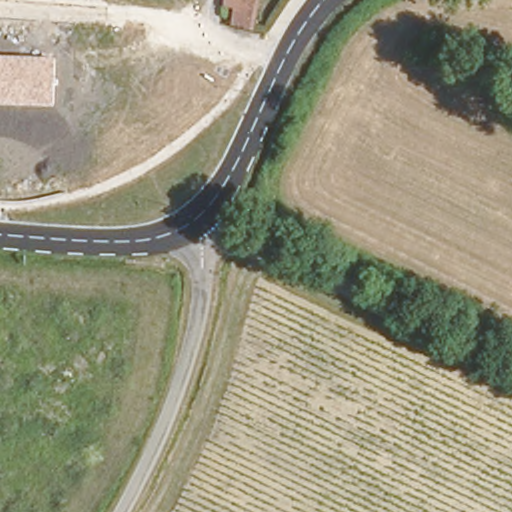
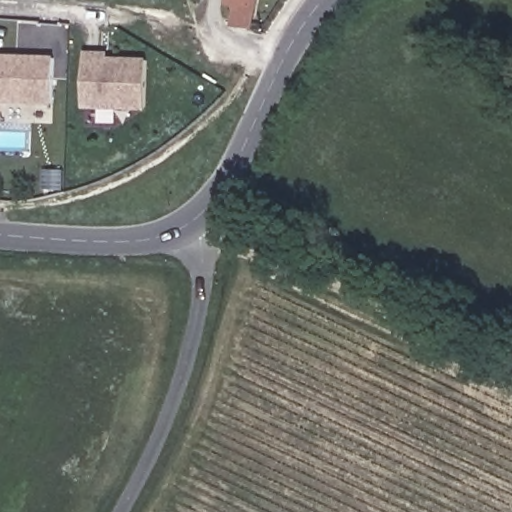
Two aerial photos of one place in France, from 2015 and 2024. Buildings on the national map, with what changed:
unchanged [(252,35),(231,34),(237,6),(222,4),(222,0),(260,0),(252,35)]
new [(145,112),(82,111),(85,52),(109,52),(109,57),(148,58),(145,112)]
unchanged [(0,105),(0,56),(56,57),(55,105),(0,105)]

